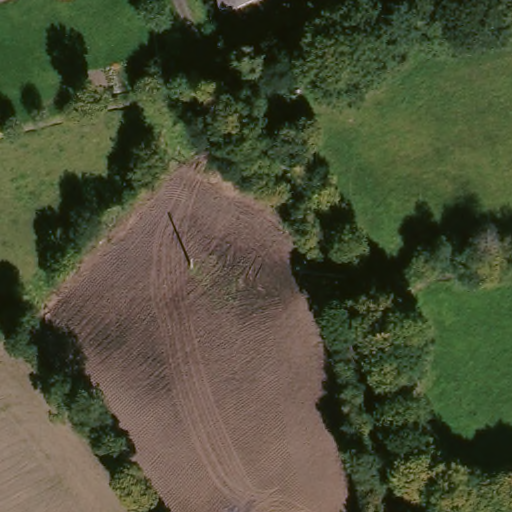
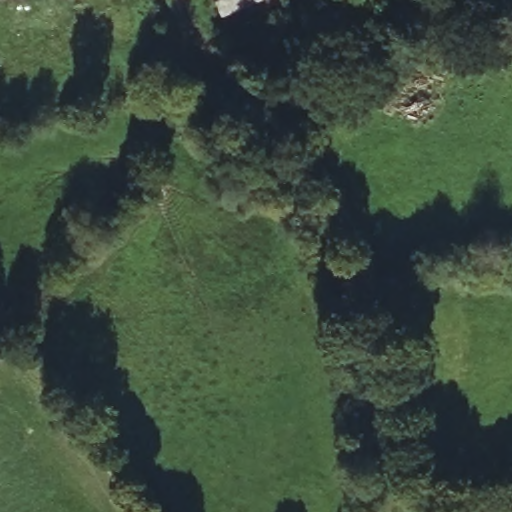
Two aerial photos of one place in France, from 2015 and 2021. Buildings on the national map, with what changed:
unchanged [(214,0),(243,0),(227,7),(219,11),(214,0)]

